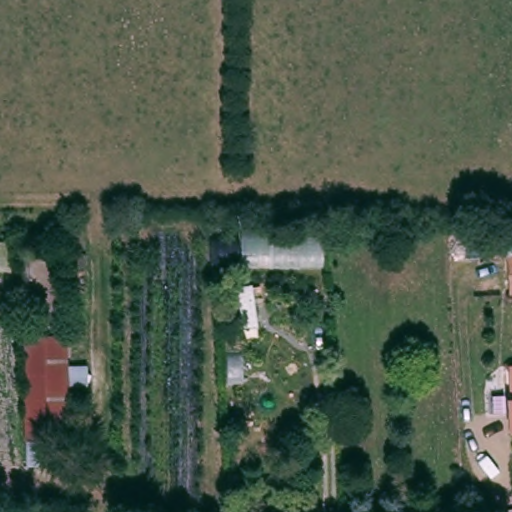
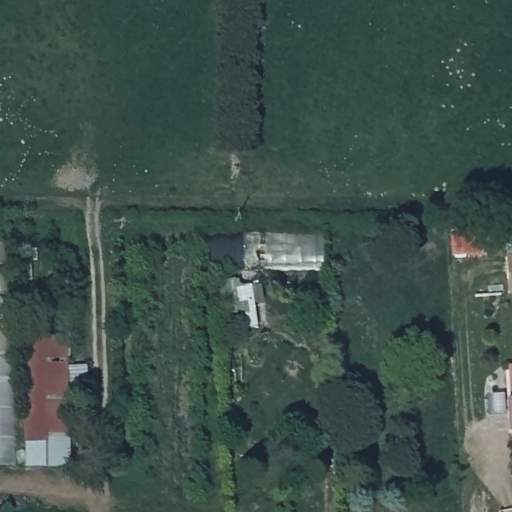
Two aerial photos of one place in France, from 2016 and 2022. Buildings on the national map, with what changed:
unchanged [(17,466),(0,466),(0,243),(11,243),(17,466)]
unchanged [(512,290),(504,290),(504,252),(512,253),(512,290)]
unchanged [(71,367),(93,367),(91,391),(71,390),(72,412),(75,413),(75,465),(29,467),(25,337),(71,338),(71,367)]
unchanged [(506,412),(512,413),(512,438),(506,437),(506,412)]

